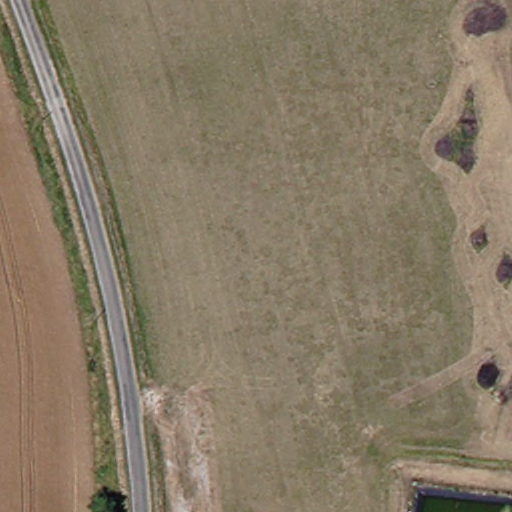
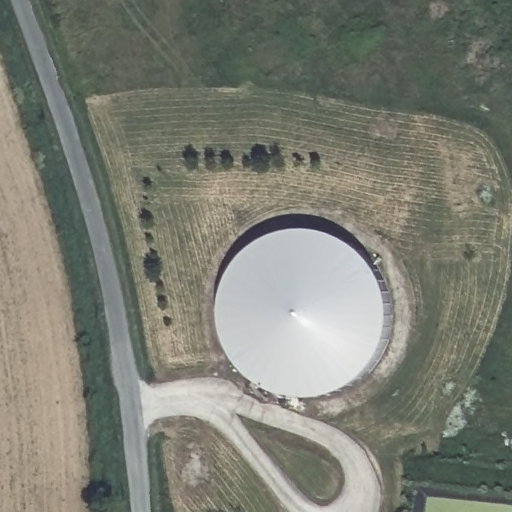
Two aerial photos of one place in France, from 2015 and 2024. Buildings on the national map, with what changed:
new [(391,333),(387,347),(381,361),(372,373),(362,383),(350,391),(337,397),(323,401),(308,402),(293,401),(280,397),(267,391),(255,382),(245,372),(237,360),(230,347),(226,333),(225,319),(226,304),(230,290),(236,277),(245,265),(255,255),(267,246),(280,240),(294,236),(309,235),(323,236),(337,240),(350,246),(362,255),(372,265),(381,277),(387,290),(391,304),(392,319),(391,333)]

